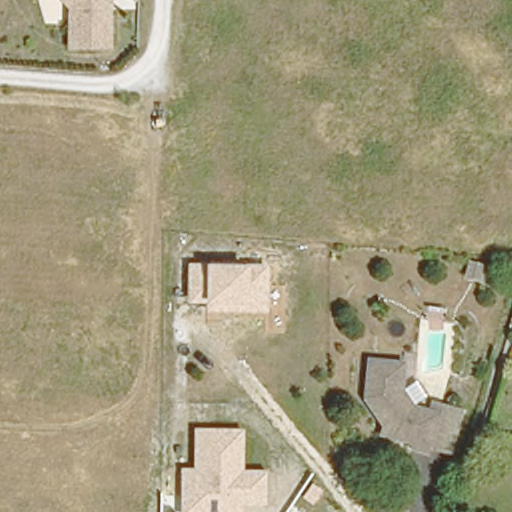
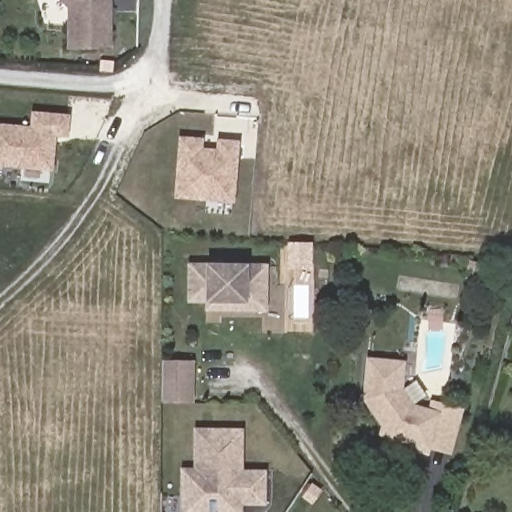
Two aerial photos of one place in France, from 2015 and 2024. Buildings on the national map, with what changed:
unchanged [(115,52),(76,53),(75,12),(63,0),(113,0),(115,52)]
new [(29,126),(31,112),(70,115),(69,139),(55,138),(53,172),(0,167),(0,124),(29,126)]
new [(203,138),(203,148),(216,149),(217,139),(239,141),(234,203),(174,199),(178,137),(203,138)]
demolished [(193,254),(221,256),(221,287),(192,287),(193,254)]
new [(266,312),(206,312),(206,302),(185,302),(185,263),(267,264),(266,312)]
new [(165,362),(192,362),(191,404),(164,404),(165,362)]
unchanged [(363,407),(364,367),(399,368),(398,395),(412,410),(438,417),(441,408),(457,412),(447,452),(430,448),(429,453),(412,449),(414,443),(392,438),(386,432),(363,407)]
unchanged [(265,469),(265,504),(242,503),(241,512),(179,512),(180,468),(195,468),(196,429),(243,428),(242,469),(265,469)]

